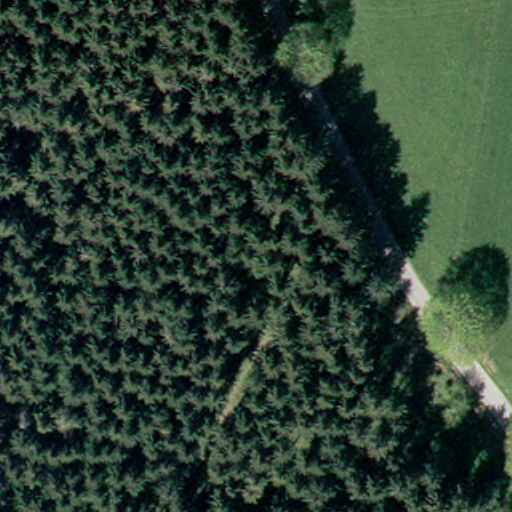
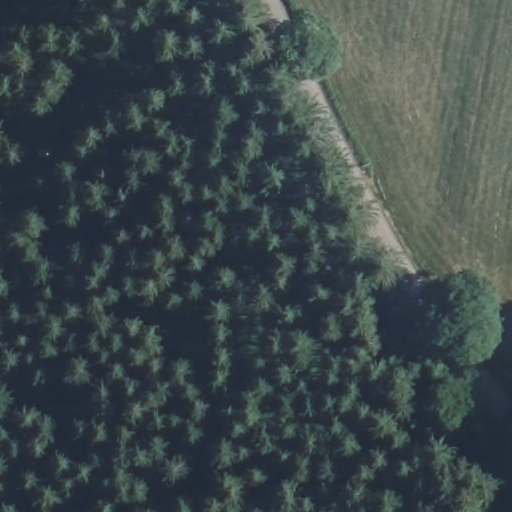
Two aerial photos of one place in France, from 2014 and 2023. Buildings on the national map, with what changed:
[]

